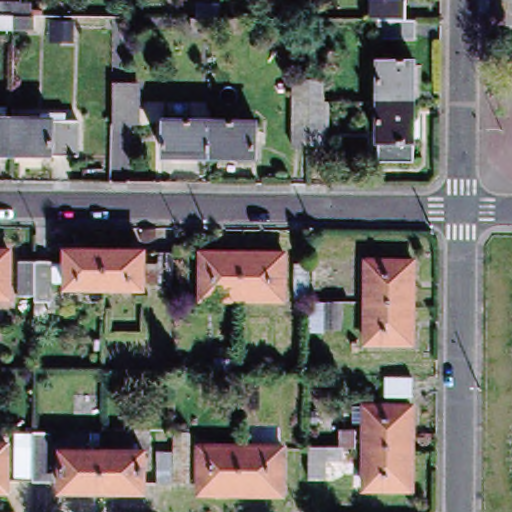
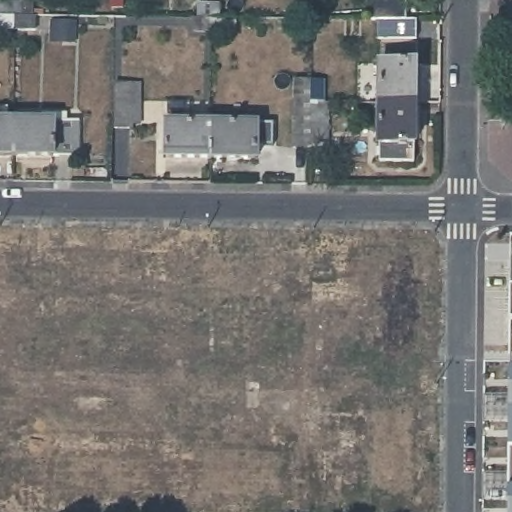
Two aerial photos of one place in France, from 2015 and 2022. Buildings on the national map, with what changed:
unchanged [(416,41),(379,40),(380,21),(369,21),(369,0),(406,1),(406,22),(416,22),(416,41)]
unchanged [(4,17),(0,17),(0,3),(4,4),(22,4),(22,18),(14,18),(4,17)]
unchanged [(215,20),(197,20),(197,6),(218,6),(218,19),(218,20),(215,20)]
unchanged [(14,32),(0,32),(0,19),(3,20),(14,20),(36,20),(36,32),(14,32)]
unchanged [(193,21),(215,21),(220,21),(235,21),(235,34),(214,34),(193,34),(193,21)]
unchanged [(380,55),(416,55),(416,95),(379,95),(380,55)]
unchanged [(334,149),(315,149),(295,148),(296,77),(315,77),(329,78),(329,99),(335,99),(334,149)]
unchanged [(140,126),(131,126),(131,130),(112,130),(113,85),(140,85),(140,126)]
unchanged [(378,154),(379,135),(379,95),(416,95),(415,135),(415,155),(378,154)]
unchanged [(17,127),(24,127),(23,164),(0,164),(0,114),(17,114),(17,127)]
unchanged [(89,165),(63,165),(23,164),(24,127),(51,128),(51,120),(77,120),(77,128),(89,129),(89,165)]
unchanged [(211,161),(165,160),(165,124),(211,125),(211,161)]
unchanged [(257,125),(256,161),(211,161),(211,125),(257,125)]
demolished [(14,300),(0,299),(0,253),(15,253),(14,300)]
demolished [(57,303),(40,302),(40,298),(22,297),(23,263),(41,263),(72,263),(72,254),(111,254),(111,291),(72,290),(72,283),(57,283),(57,303)]
demolished [(150,255),(149,291),(111,291),(111,254),(150,255)]
demolished [(178,291),(163,291),(163,286),(153,286),(154,265),(163,265),(163,254),(179,254),(178,291)]
demolished [(243,302),(202,301),(202,255),(244,255),(243,302)]
demolished [(285,255),(285,302),(243,302),(244,255),(285,255)]
demolished [(324,331),(325,303),(314,303),(314,262),(314,256),(350,256),(350,268),(335,268),(335,271),(334,288),(350,288),(357,288),(357,262),(367,262),(414,263),(413,309),(367,308),(367,303),(350,303),(343,303),(343,331),(324,331)]
new [(512,258),(512,317),(509,317),(506,258),(512,258)]
demolished [(310,301),(294,301),(295,265),(311,266),(310,301)]
demolished [(508,312),(508,270),(512,270),(512,312),(508,312)]
demolished [(413,346),(366,345),(367,308),(413,309),(413,346)]
demolished [(507,353),(508,312),(512,312),(512,354),(507,353)]
demolished [(241,374),(215,373),(215,360),(242,360),(241,374)]
new [(512,366),(512,512),(506,512),(507,365),(512,366)]
demolished [(385,397),(385,378),(412,379),(412,398),(385,397)]
demolished [(259,429),(244,429),(244,392),(259,392),(259,429)]
demolished [(365,449),(365,423),(365,407),(412,408),(412,450),(365,449)]
demolished [(339,448),(340,431),(356,431),(355,449),(343,448),(343,462),(325,462),(325,480),(309,480),(309,448),(325,448),(339,448)]
demolished [(506,465),(507,432),(512,432),(512,465),(506,465)]
demolished [(15,459),(16,447),(32,447),(32,443),(32,433),(53,434),(52,484),(32,483),(29,483),(15,483),(15,459)]
demolished [(101,448),(90,448),(90,433),(101,433),(101,448)]
demolished [(157,453),(174,453),(174,439),(174,433),(190,434),(190,486),(174,486),(156,485),(157,453)]
demolished [(200,495),(200,449),(200,442),(214,442),(214,449),(242,449),(241,496),(200,495)]
demolished [(7,494),(0,494),(0,446),(7,446),(7,494)]
demolished [(283,449),(283,496),(241,496),(242,449),(283,449)]
demolished [(412,491),(365,491),(365,449),(412,450),(412,491)]
demolished [(103,495),(62,495),(62,454),(104,455),(103,495)]
demolished [(145,455),(145,495),(103,495),(104,455),(145,455)]
demolished [(506,498),(506,465),(512,465),(512,499),(506,498)]

